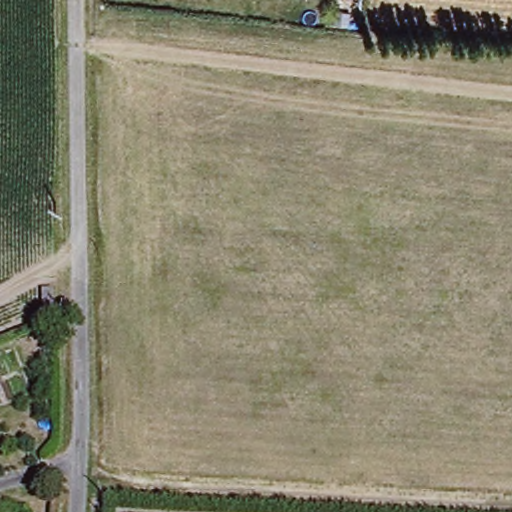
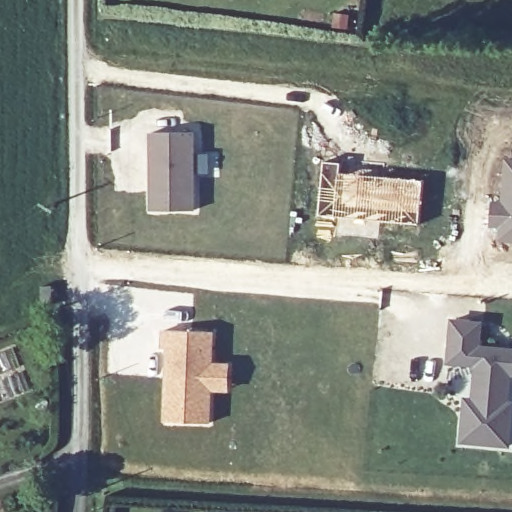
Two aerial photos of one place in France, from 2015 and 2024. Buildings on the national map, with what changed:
new [(156,133),(198,133),(198,211),(156,212),(156,133)]
new [(492,199),(499,199),(504,158),(512,158),(512,244),(496,242),(498,229),(489,228),(492,199)]
new [(341,171),(425,179),(420,225),(337,217),(341,171)]
new [(483,321),(482,345),(512,348),(512,393),(511,404),(512,404),(512,446),(461,443),(465,398),(472,399),(475,367),(447,364),(451,319),(483,321)]
new [(162,329),(216,330),(215,361),(232,362),(231,392),(214,392),(212,423),(162,422),(162,329)]

